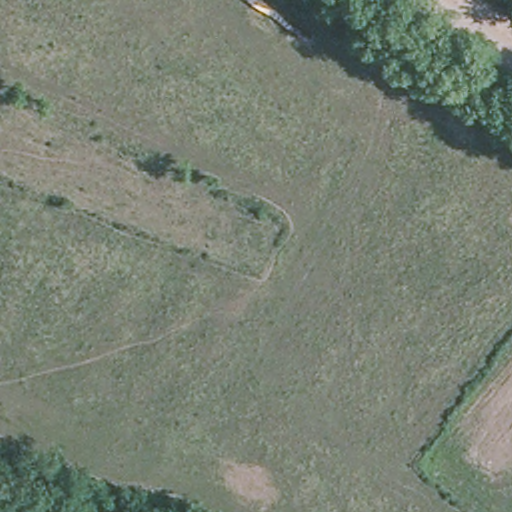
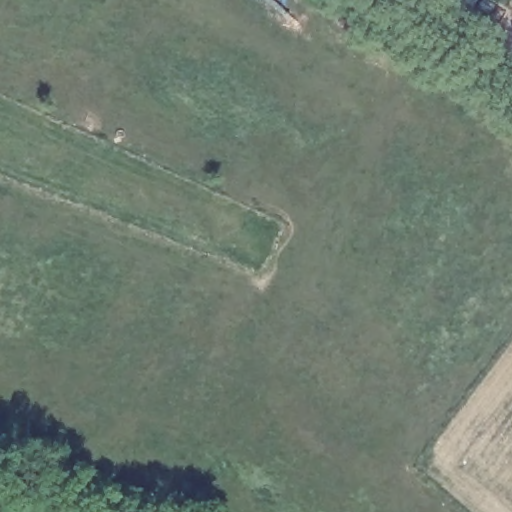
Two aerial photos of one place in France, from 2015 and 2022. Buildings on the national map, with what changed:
[]

